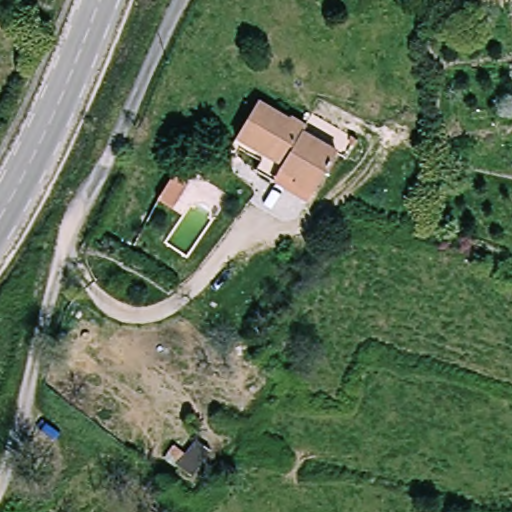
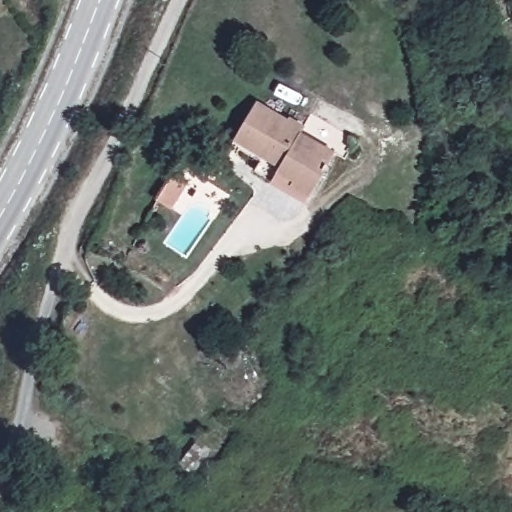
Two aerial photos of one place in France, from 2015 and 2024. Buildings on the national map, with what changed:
unchanged [(278,180),(286,166),(289,162),(243,136),(264,99),(288,114),(291,110),(311,122),(307,129),(341,149),(318,189),(311,201),(278,180)]
unchanged [(176,202),(186,214),(176,243),(168,244),(163,240),(176,202)]

